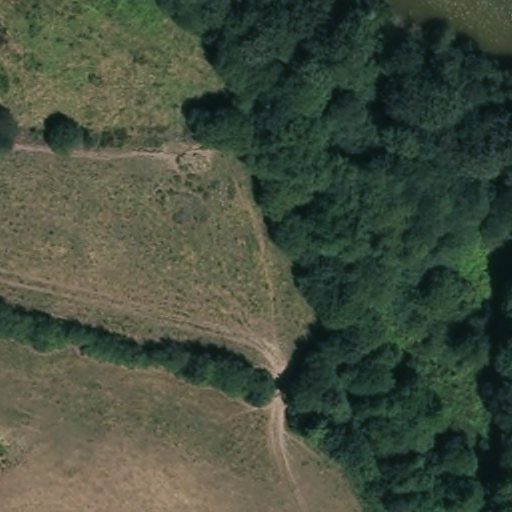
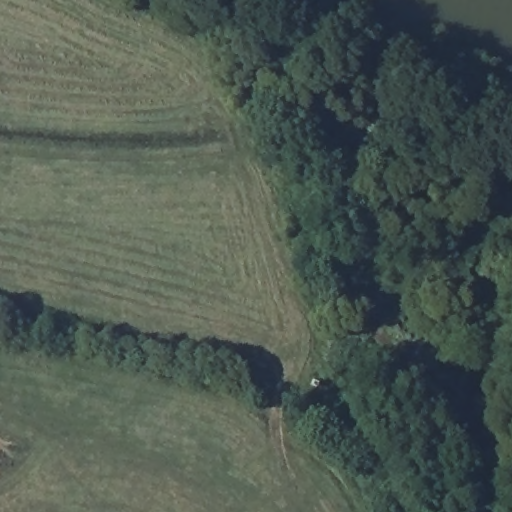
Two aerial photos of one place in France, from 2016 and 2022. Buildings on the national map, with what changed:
[]

